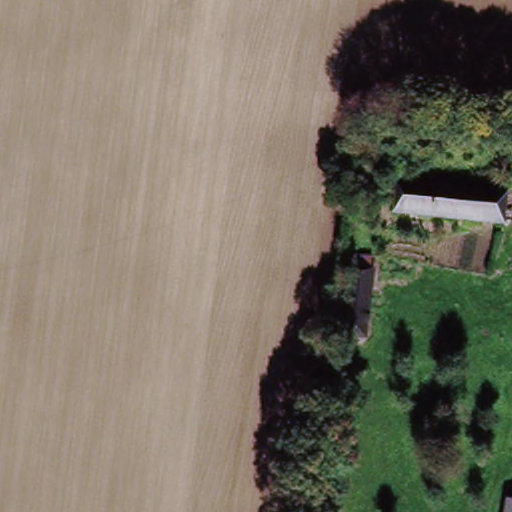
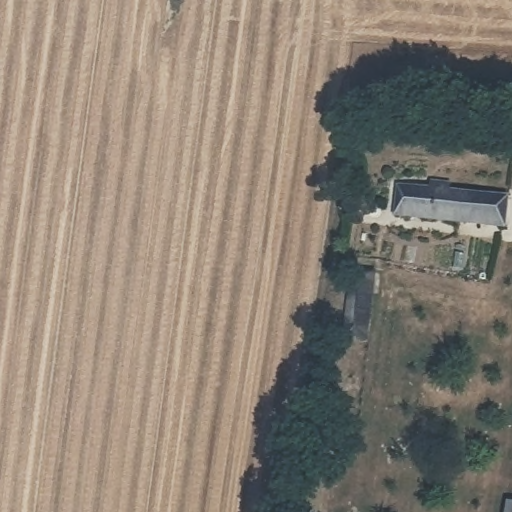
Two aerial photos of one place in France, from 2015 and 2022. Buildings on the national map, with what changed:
unchanged [(504,232),(395,215),(401,185),(432,190),(433,181),(457,184),(457,194),(510,202),(504,232)]
unchanged [(363,340),(338,337),(347,271),(373,274),(363,340)]
unchanged [(508,502),(512,503),(512,512),(506,512),(508,502)]

